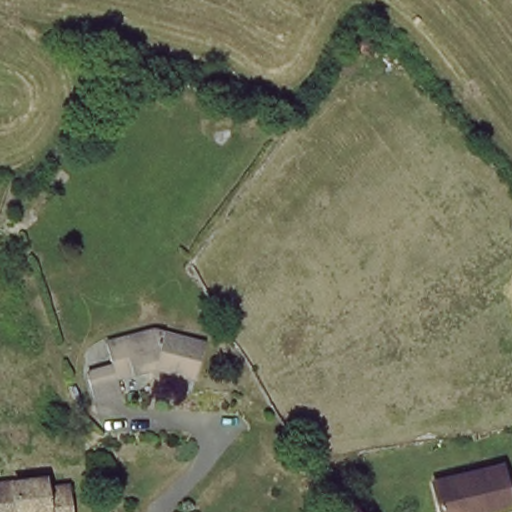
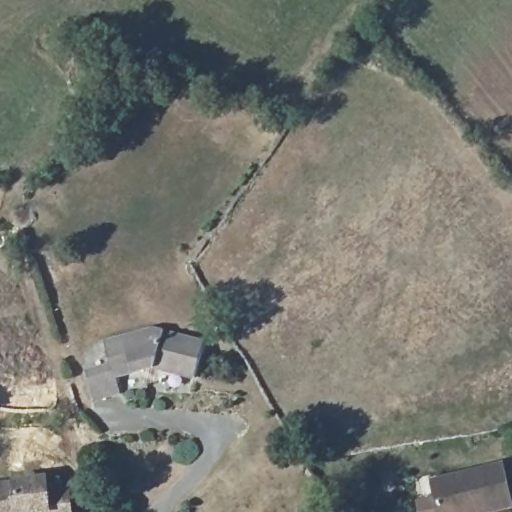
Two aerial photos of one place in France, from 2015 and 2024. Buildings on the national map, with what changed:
unchanged [(111,363),(103,339),(147,324),(199,334),(193,368),(150,359),(117,373),(123,389),(96,399),(87,371),(111,363)]
unchanged [(432,482),(500,464),(512,507),(489,512),(440,512),(432,482)]
unchanged [(50,477),(51,484),(72,483),(74,512),(0,512),(0,482),(13,481),(50,477)]

